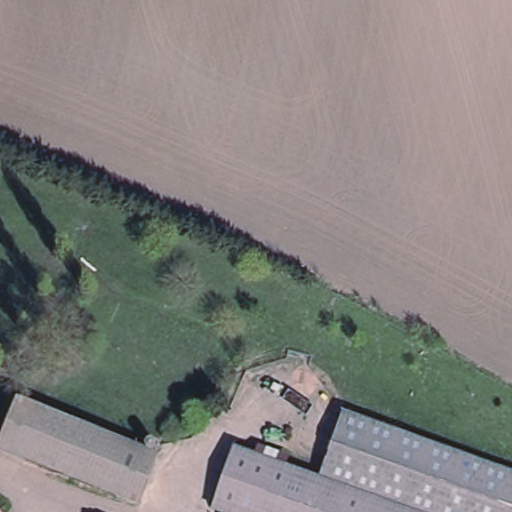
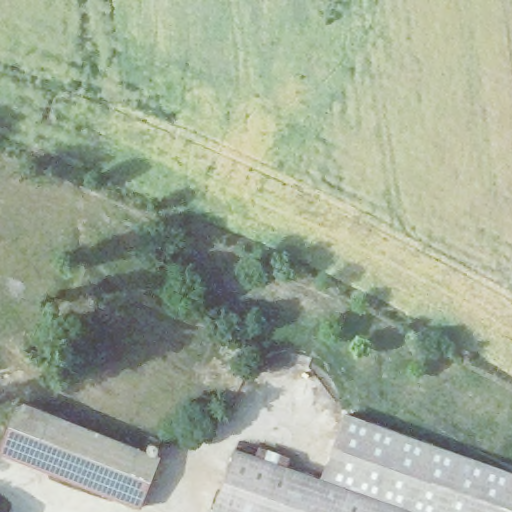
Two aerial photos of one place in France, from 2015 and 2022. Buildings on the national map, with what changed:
unchanged [(140,503),(0,463),(0,453),(12,408),(157,450),(140,503)]
unchanged [(346,410),(512,473),(512,512),(412,512),(320,477),(346,410)]
unchanged [(235,445),(320,477),(412,512),(238,512),(213,502),(235,445)]
unchanged [(4,512),(0,512),(0,495),(10,502),(4,512)]

